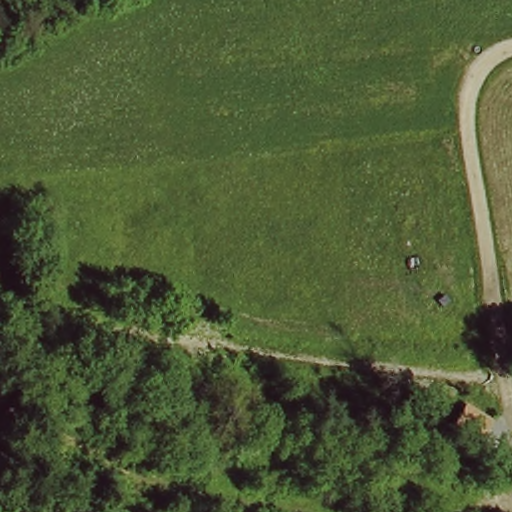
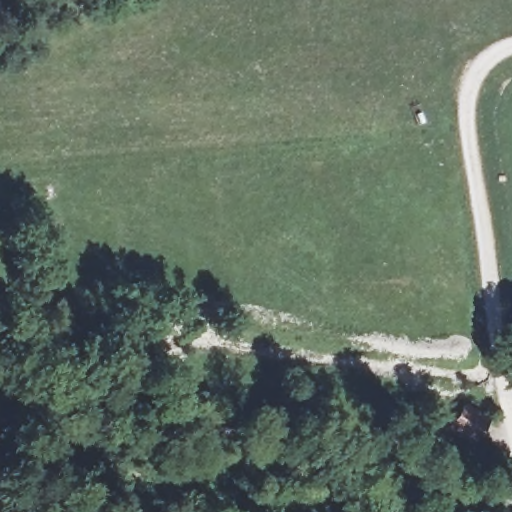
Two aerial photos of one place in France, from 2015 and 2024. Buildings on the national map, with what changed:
[]

